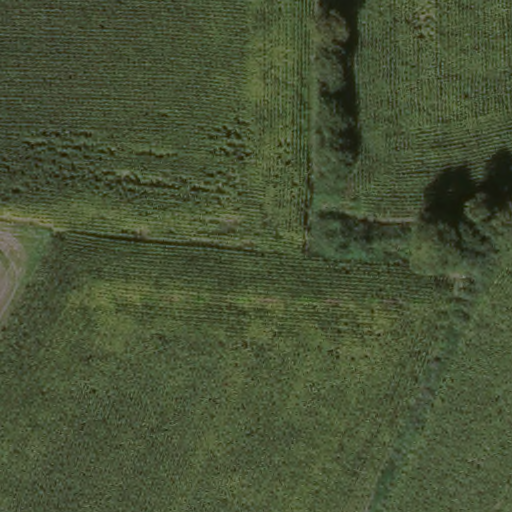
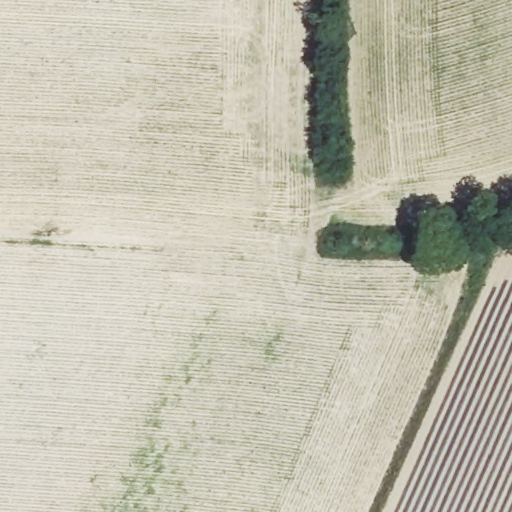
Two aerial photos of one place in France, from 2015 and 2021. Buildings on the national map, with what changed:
[]

